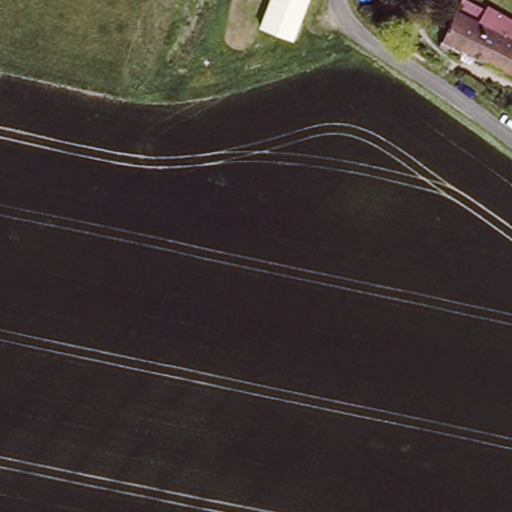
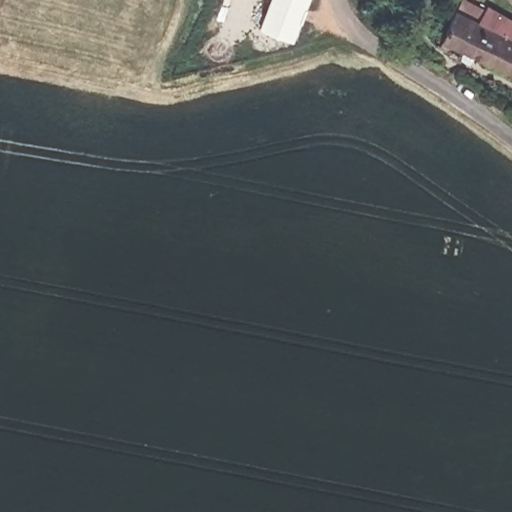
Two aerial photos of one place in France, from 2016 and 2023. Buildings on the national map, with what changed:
unchanged [(269,0),(312,0),(293,42),(257,30),(269,0)]
unchanged [(454,5),(478,15),(485,5),(512,18),(512,74),(438,44),(454,5)]

